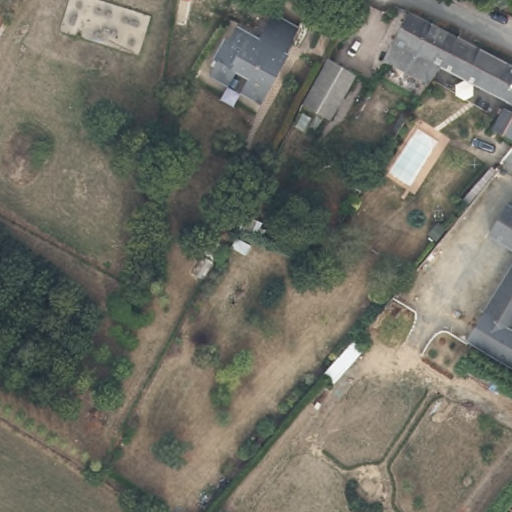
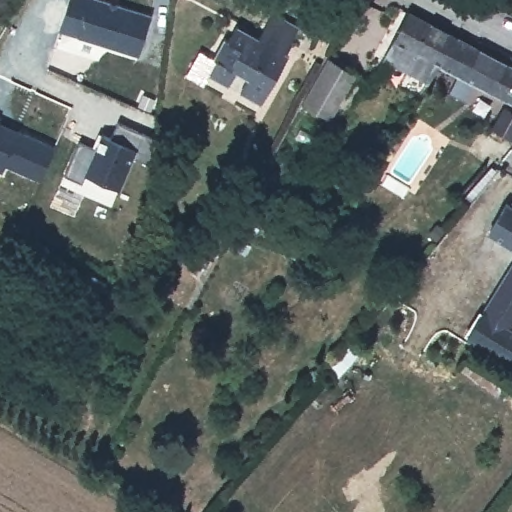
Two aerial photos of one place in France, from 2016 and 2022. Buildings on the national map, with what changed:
unchanged [(67,0),(108,0),(150,14),(138,53),(59,27),(67,0)]
unchanged [(244,91),(252,76),(240,70),(231,86),(212,75),(220,61),(215,59),(228,36),(234,40),(240,25),(261,37),(276,11),(301,26),(288,52),(292,55),(265,103),(244,91)]
unchanged [(390,57),(414,13),(460,36),(442,66),(435,80),(390,57)]
unchanged [(460,36),(512,63),(512,100),(442,66),(460,36)]
unchanged [(303,106),(328,62),(354,81),(330,123),(303,106)]
unchanged [(510,107),(512,108),(512,137),(497,129),(510,107)]
new [(96,148),(102,134),(111,137),(118,121),(152,136),(146,151),(152,154),(145,170),(131,163),(120,189),(87,175),(82,184),(65,175),(80,141),(96,148)]
new [(0,171),(0,122),(20,130),(54,145),(40,180),(5,165),(1,172),(0,171)]
unchanged [(242,194),(226,225),(210,215),(226,185),(242,194)]
unchanged [(511,195),(512,195),(512,238),(492,226),(511,195)]
unchanged [(512,261),(512,318),(511,320),(484,302),(512,261)]
unchanged [(507,328),(512,331),(512,366),(467,341),(484,302),(511,320),(507,328)]

